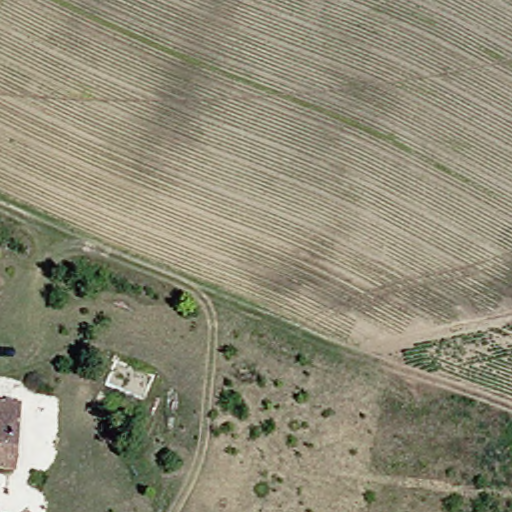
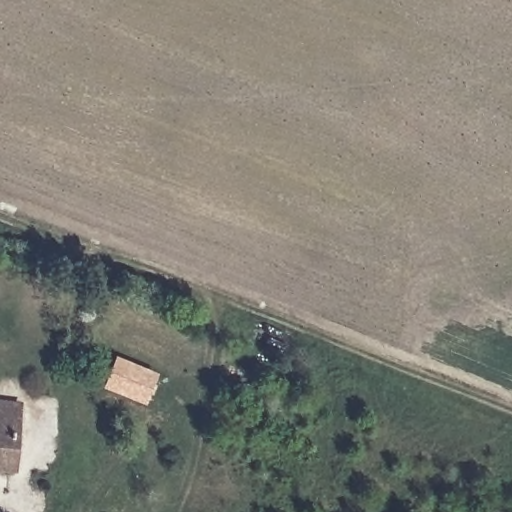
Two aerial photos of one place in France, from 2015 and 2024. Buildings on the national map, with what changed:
new [(103,388),(116,356),(160,374),(146,406),(103,388)]
unchanged [(6,471),(0,470),(0,403),(17,406),(6,471)]

